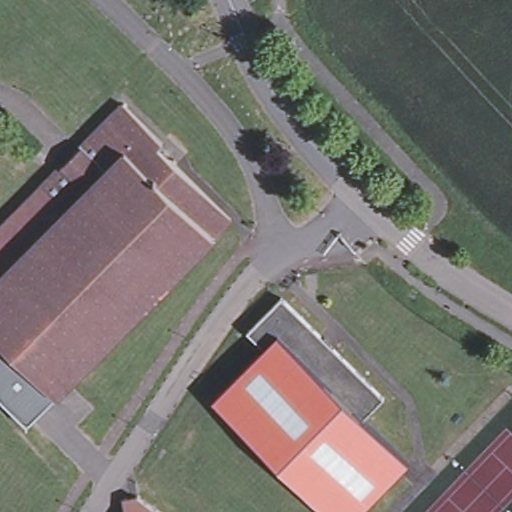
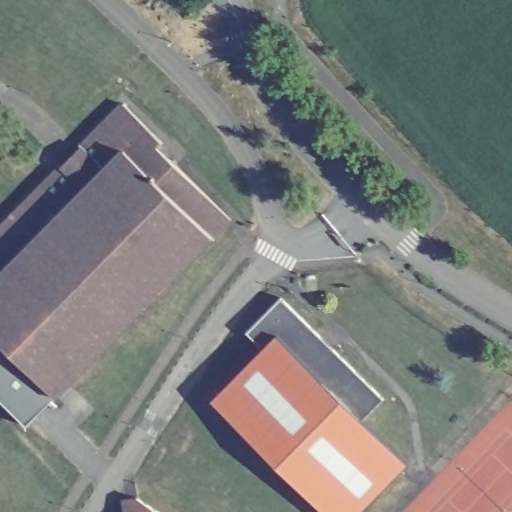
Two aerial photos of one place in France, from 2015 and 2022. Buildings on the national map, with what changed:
unchanged [(65,169),(82,152),(126,107),(165,147),(161,151),(232,222),(215,240),(127,152),(67,213),(44,190),(65,169)]
unchanged [(0,400),(0,234),(44,190),(67,213),(127,152),(215,240),(57,398),(27,428),(0,400)]
unchanged [(385,396),(365,417),(409,461),(358,512),(328,512),(213,398),(265,346),(248,330),(282,295),(321,333),(334,346),(385,396)]
unchanged [(138,500),(156,512),(127,512),(125,503),(138,500)]

